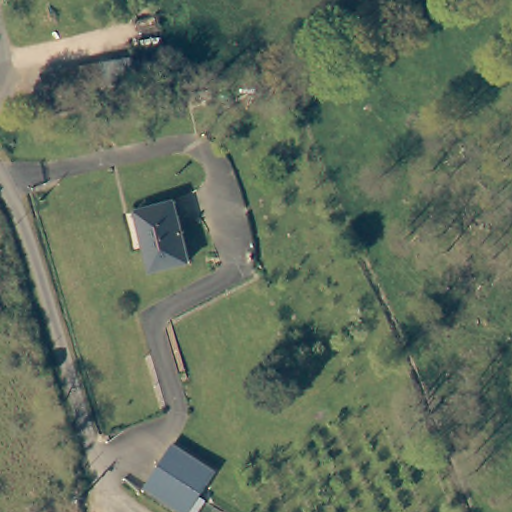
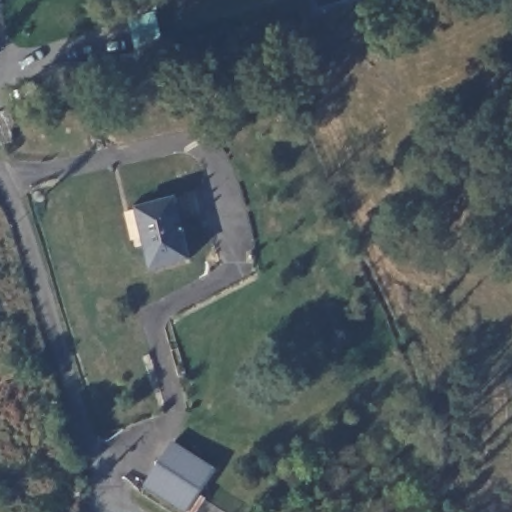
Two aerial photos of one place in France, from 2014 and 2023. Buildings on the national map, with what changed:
unchanged [(49,92),(43,68),(101,54),(107,78),(49,92)]
unchanged [(148,267),(133,211),(172,201),(187,257),(148,267)]
unchanged [(170,442),(213,470),(186,512),(181,512),(142,486),(170,442)]

